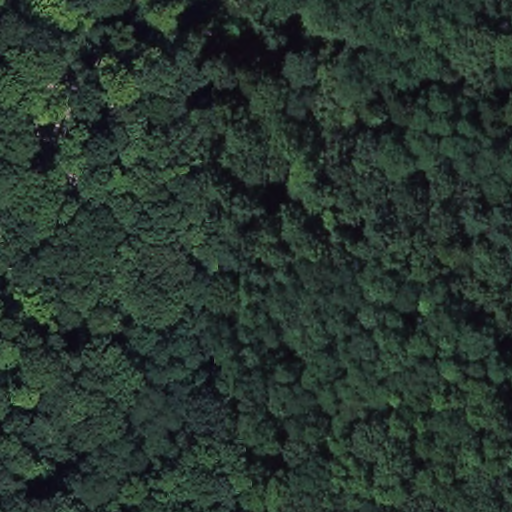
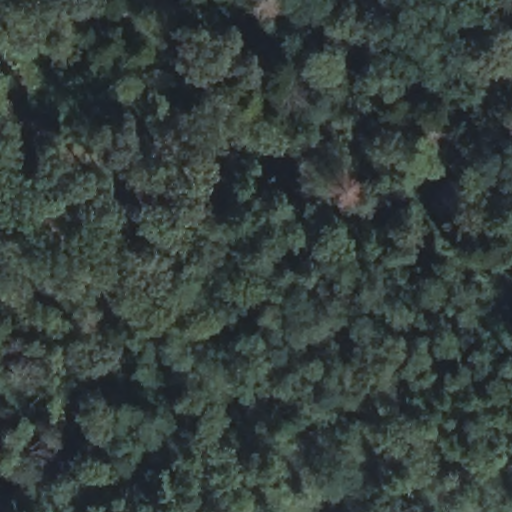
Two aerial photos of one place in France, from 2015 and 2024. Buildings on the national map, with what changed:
[]

